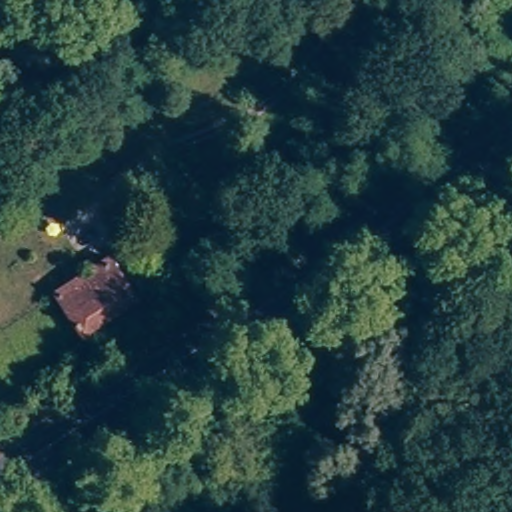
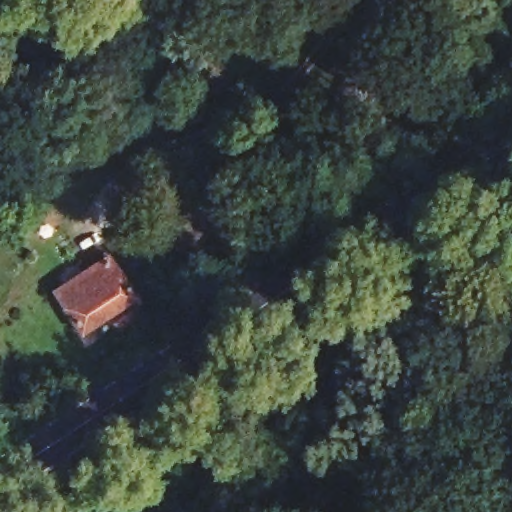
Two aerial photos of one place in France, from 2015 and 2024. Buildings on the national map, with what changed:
unchanged [(138,296),(88,332),(60,292),(110,254),(138,296)]

